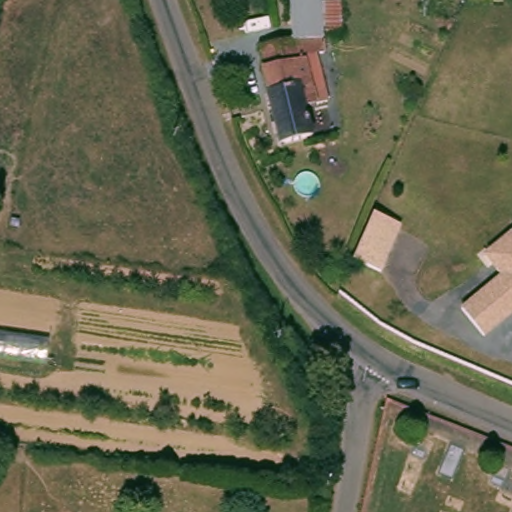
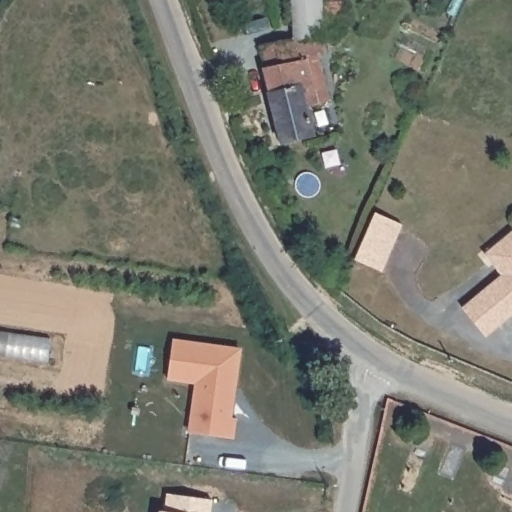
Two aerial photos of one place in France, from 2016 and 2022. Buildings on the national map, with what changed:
unchanged [(328,39),(327,54),(312,55),(320,101),(310,103),(316,134),(280,140),(267,93),(264,66),(260,42),(292,36),(289,0),(344,0),(348,38),(328,39)]
unchanged [(399,230),(379,272),(355,261),(373,218),(399,230)]
unchanged [(484,302),(506,281),(498,272),(490,263),(512,243),(512,321),(496,336),(477,316),(473,312),(484,302)]
new [(194,385),(166,381),(172,339),(241,349),(232,418),(236,419),(234,439),(187,433),(194,385)]

